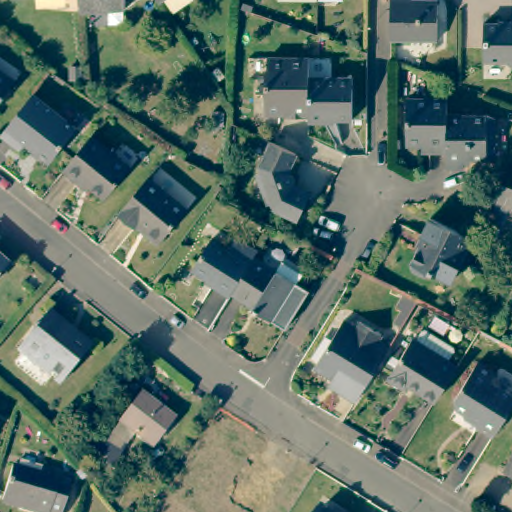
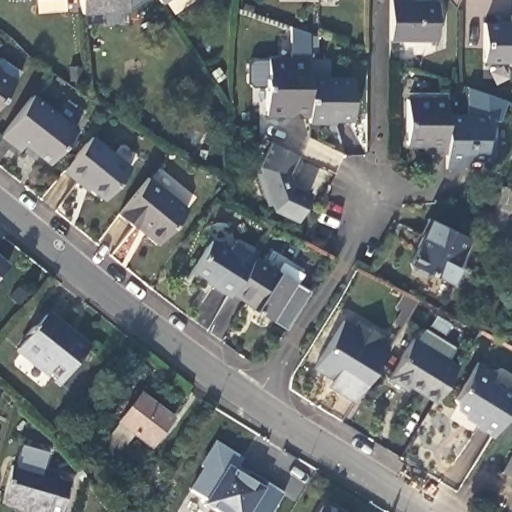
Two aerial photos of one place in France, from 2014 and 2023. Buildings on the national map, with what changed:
unchanged [(125,10),(80,13),(80,9),(79,0),(141,0),(125,10)]
unchanged [(159,4),(156,0),(165,0),(159,4)]
unchanged [(433,39),(388,38),(388,0),(433,0),(433,39)]
unchanged [(511,66),(507,62),(484,62),(484,23),(512,23),(512,16),(512,66),(511,66)]
unchanged [(311,109),(268,109),(268,73),(271,70),(271,51),(312,52),(312,71),(311,109)]
unchanged [(0,101),(0,66),(17,78),(0,101)]
unchanged [(311,109),(312,71),(353,73),(353,113),(327,113),(327,116),(311,116),(311,109)]
unchanged [(78,122),(52,157),(49,155),(27,139),(22,145),(4,132),(36,92),(73,118),(78,122)]
unchanged [(445,110),(445,148),(427,147),(427,141),(404,139),(404,95),(445,95),(445,110)]
unchanged [(445,148),(445,110),(483,110),(492,115),(492,151),(483,156),(462,155),(462,164),(445,164),(445,148)]
unchanged [(92,136),(130,168),(105,198),(81,179),(78,182),(64,170),(92,136)]
unchanged [(286,176),(290,188),(307,197),(295,223),(270,210),(268,202),(265,203),(258,176),(261,175),(258,166),(271,144),(296,157),(286,176)]
unchanged [(135,226),(134,228),(117,214),(147,178),(185,208),(160,240),(156,243),(135,226)]
unchanged [(510,215),(495,209),(503,185),(512,189),(512,216),(510,215)]
unchanged [(426,275),(423,282),(406,274),(406,264),(418,236),(417,235),(426,219),(462,238),(452,260),(455,265),(445,284),(426,275)]
unchanged [(212,287),(212,284),(191,270),(209,240),(248,264),(231,292),(227,297),(212,287)]
unchanged [(280,262),(300,275),(294,284),(271,321),(252,309),(252,307),(231,292),(248,264),(252,257),(275,271),(280,262)]
unchanged [(0,285),(0,263),(11,273),(0,285)]
unchanged [(16,344),(22,337),(19,334),(27,324),(29,326),(41,313),(82,349),(57,378),(16,344)]
unchanged [(340,394),(344,388),(315,367),(343,321),(355,329),(358,322),(381,337),(377,342),(386,349),(353,402),(340,394)]
unchanged [(405,391),(387,379),(413,340),(420,331),(422,330),(447,347),(448,350),(442,359),(455,367),(433,402),(408,386),(405,391)]
unchanged [(477,424),(478,421),(458,407),(456,396),(478,360),(495,370),(490,378),(512,393),(512,397),(490,433),(477,424)]
unchanged [(116,418),(139,389),(170,414),(148,443),(116,418)]
unchanged [(91,455),(106,432),(127,445),(112,468),(91,455)]
new [(236,471),(256,484),(261,478),(284,495),(274,512),(216,512),(205,505),(207,502),(191,490),(204,467),(201,465),(216,442),(243,460),(236,471)]
unchanged [(502,474),(512,456),(512,480),(502,474)]
demolished [(253,459),(280,475),(270,492),(273,495),(270,501),(266,499),(258,512),(249,512),(229,499),(253,459)]
unchanged [(17,466),(72,484),(64,512),(29,512),(22,509),(5,504),(6,500),(17,466)]
unchanged [(333,512),(320,512),(323,506),(333,512)]

